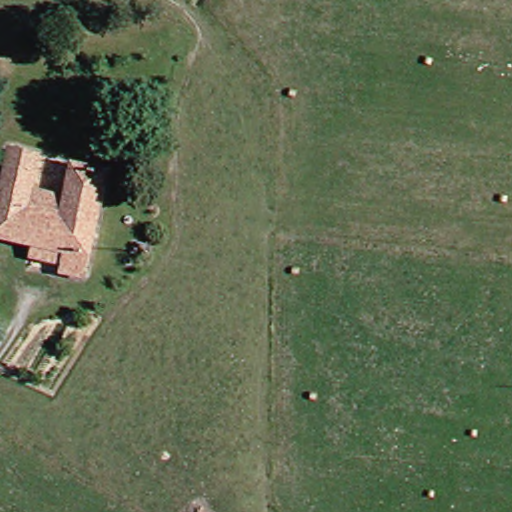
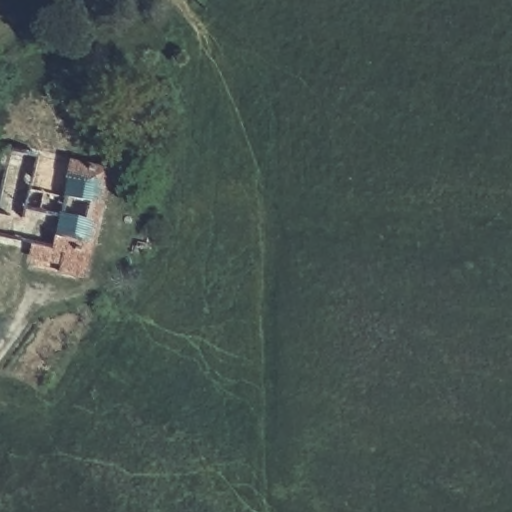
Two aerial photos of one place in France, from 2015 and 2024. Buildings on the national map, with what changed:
unchanged [(66,260),(36,253),(38,243),(0,236),(0,211),(10,148),(43,154),(37,188),(69,195),(76,162),(109,169),(103,202),(99,221),(89,274),(64,269),(66,260)]

